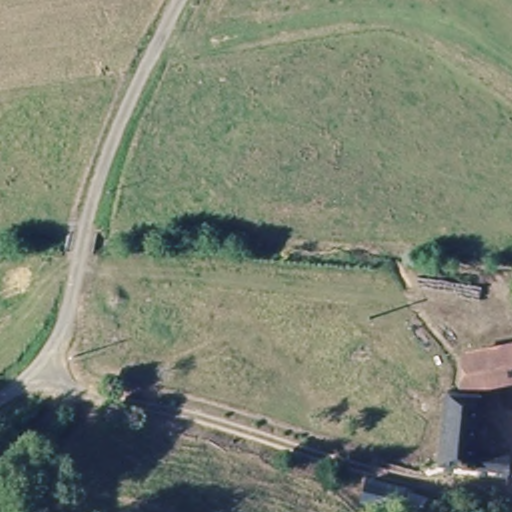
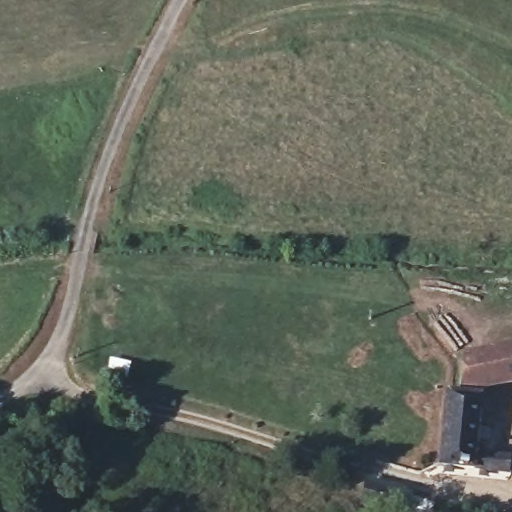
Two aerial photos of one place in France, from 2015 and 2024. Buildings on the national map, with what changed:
unchanged [(476,438),(506,443),(505,467),(438,461),(444,387),(460,383),(461,348),(510,341),(512,341),(512,382),(486,383),(476,438)]
unchanged [(395,480),(393,499),(358,493),(359,474),(395,480)]

